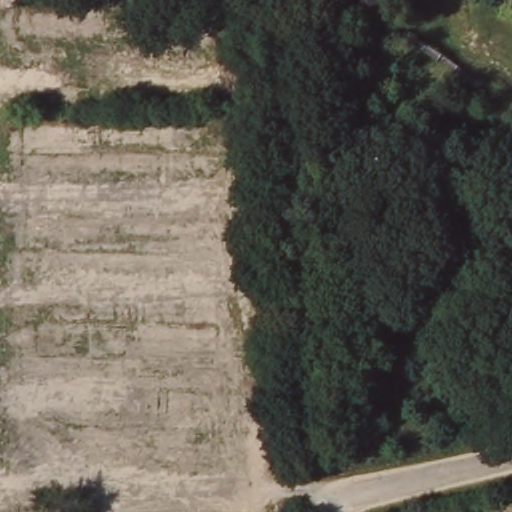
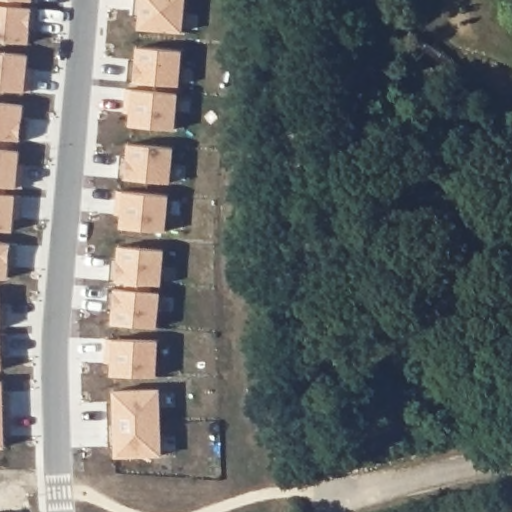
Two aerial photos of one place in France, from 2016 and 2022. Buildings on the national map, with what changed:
new [(35,30),(29,30),(28,44),(0,41),(0,0),(38,0),(35,30)]
new [(138,30),(139,14),(133,14),(135,0),(185,0),(182,35),(138,30)]
unchanged [(348,17),(346,0),(347,0),(385,0),(385,13),(370,25),(367,26),(348,17)]
new [(124,81),(125,59),(134,60),(135,46),(181,50),(178,86),(132,82),(124,81)]
new [(28,55),(27,67),(33,69),(30,93),(24,93),(0,90),(0,53),(28,55)]
new [(130,105),(125,105),(126,90),(131,90),(177,95),(175,130),(128,126),(130,105)]
new [(23,105),(21,120),(28,120),(26,141),(20,140),(0,139),(0,102),(23,105)]
new [(118,179),(119,155),(125,156),(126,143),(172,148),(169,184),(123,180),(118,179)]
new [(18,152),(17,164),(24,165),(19,219),(13,219),(12,231),(0,230),(0,151),(18,152)]
new [(120,214),(114,213),(116,192),(122,191),(168,195),(166,232),(119,228),(120,214)]
new [(10,243),(16,245),(15,265),(8,265),(7,280),(0,279),(0,242),(10,243)]
new [(118,245),(163,250),(160,285),(114,281),(108,280),(110,258),(116,260),(118,245)]
new [(112,311),(106,310),(107,288),(114,288),(159,292),(156,327),(111,324),(112,311)]
new [(5,306),(8,355),(0,356),(1,370),(0,370),(0,306),(5,306)]
new [(110,359),(104,359),(106,339),(112,339),(157,340),(156,377),(110,376),(110,359)]
new [(2,381),(2,393),(8,393),(9,420),(3,420),(4,447),(0,448),(0,381),(2,381)]
new [(159,388),(161,455),(114,456),(114,442),(108,442),(107,404),(113,403),(113,390),(159,388)]

